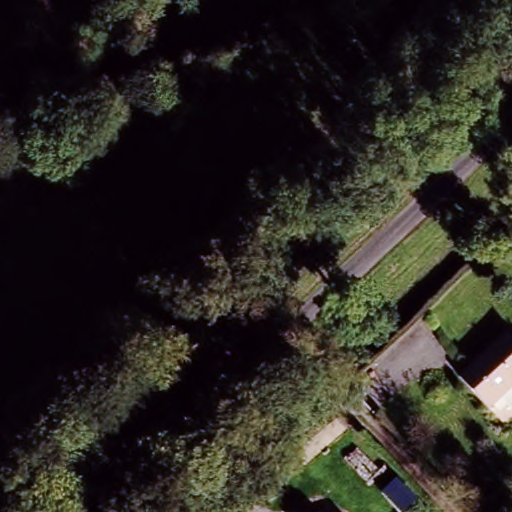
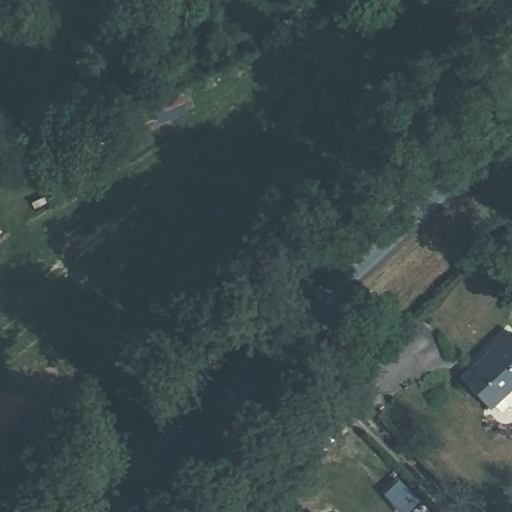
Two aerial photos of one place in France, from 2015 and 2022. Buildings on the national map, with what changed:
unchanged [(145,38),(118,0),(148,0),(164,24),(145,38)]
unchanged [(505,334),(512,342),(512,406),(506,411),(494,397),(481,407),(454,376),(505,334)]
unchanged [(24,429),(41,447),(0,487),(0,453),(24,429)]

